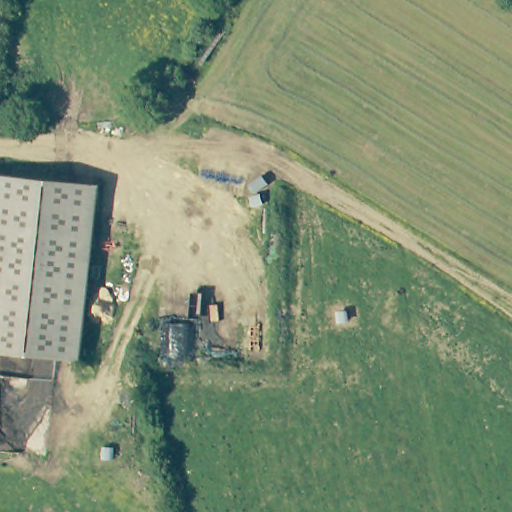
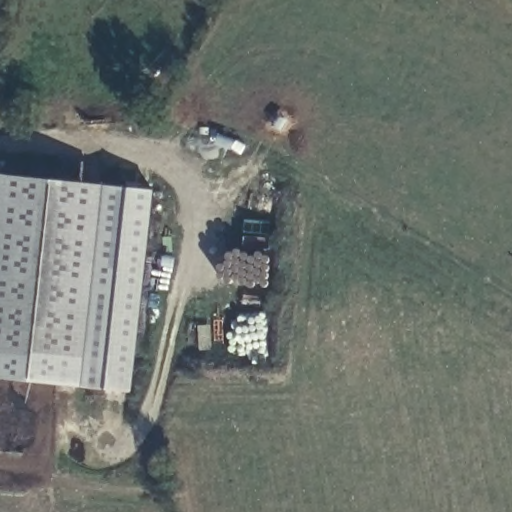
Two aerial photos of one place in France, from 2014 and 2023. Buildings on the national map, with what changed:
unchanged [(0,206),(0,167),(5,168),(0,206)]
unchanged [(103,179),(84,353),(34,347),(0,344),(0,206),(5,168),(103,179)]
new [(132,390),(0,376),(0,344),(34,347),(84,353),(103,179),(154,185),(132,390)]

